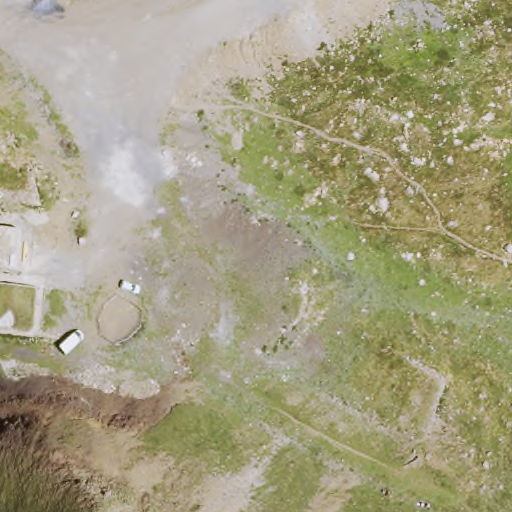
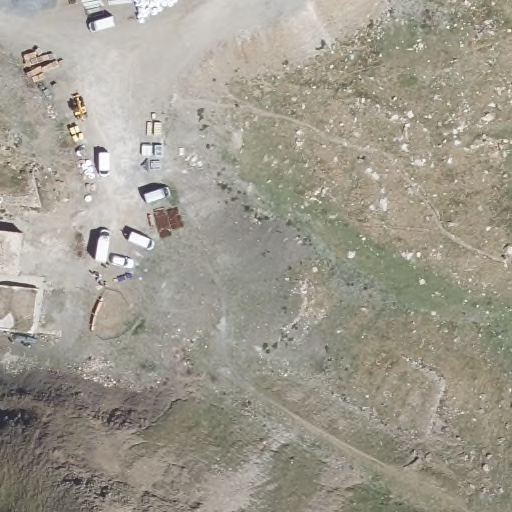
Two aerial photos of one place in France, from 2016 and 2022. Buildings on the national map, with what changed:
unchanged [(0,275),(0,231),(29,234),(23,276),(0,275)]
unchanged [(0,329),(0,287),(41,290),(38,335),(0,329)]

